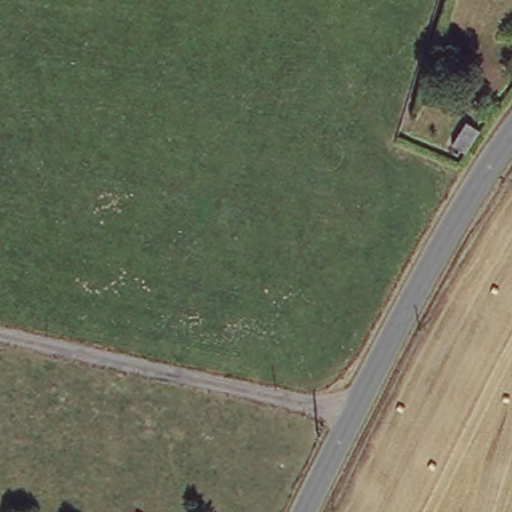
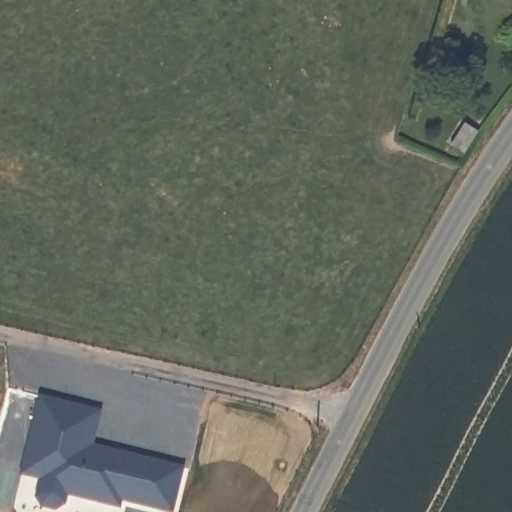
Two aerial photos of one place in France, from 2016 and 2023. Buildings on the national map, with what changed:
unchanged [(487,129),(471,154),(455,143),(471,119),(487,129)]
new [(87,404),(80,444),(182,469),(173,512),(167,512),(123,501),(120,509),(66,497),(64,502),(55,507),(49,507),(39,498),(38,489),(48,449),(34,447),(46,394),(87,404)]

